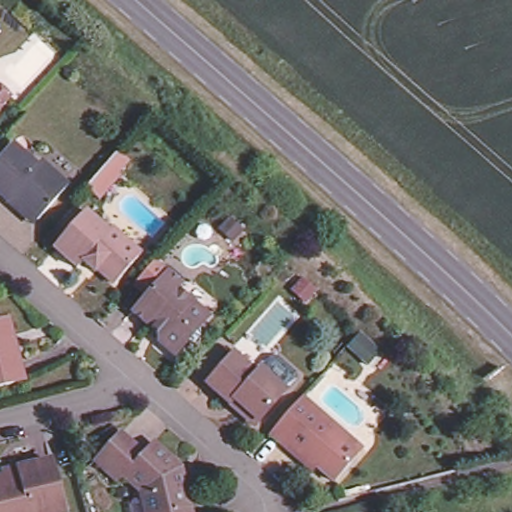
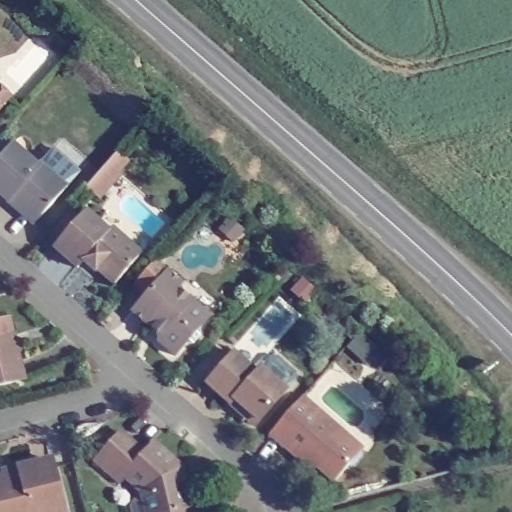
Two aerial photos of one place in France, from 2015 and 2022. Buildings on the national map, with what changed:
unchanged [(13,106),(0,121),(0,94),(13,106)]
unchanged [(10,206),(0,198),(0,164),(14,148),(40,170),(45,166),(71,190),(40,224),(36,230),(10,206)]
unchanged [(105,235),(109,231),(140,258),(112,288),(95,273),(92,276),(80,266),(75,272),(51,251),(82,215),(105,235)]
unchanged [(233,230),(246,242),(235,253),(222,240),(233,230)]
unchanged [(147,303),(135,292),(138,288),(155,270),(157,267),(169,278),(183,291),(180,295),(212,323),(202,334),(202,342),(195,350),(187,351),(177,361),(160,347),(160,340),(148,330),(135,318),(147,303)]
unchanged [(301,295),(315,306),(304,318),(290,305),(301,295)]
unchanged [(25,381),(0,387),(0,324),(11,321),(25,381)]
unchanged [(362,347),(380,365),(368,378),(350,360),(362,347)]
unchanged [(225,407),(202,386),(225,360),(247,380),(252,375),(262,365),(268,364),(287,380),(287,387),(277,398),(255,425),(250,430),(225,407)]
unchanged [(284,450),(271,439),(304,402),(363,455),(335,486),(317,471),(313,476),(284,450)]
unchanged [(125,476),(120,482),(96,461),(121,432),(145,453),(125,476)]
unchanged [(142,490),(125,476),(145,453),(154,442),(182,466),(187,488),(190,505),(192,512),(147,512),(142,490)]
unchanged [(15,472),(47,465),(58,512),(0,512),(0,476),(15,472)]

